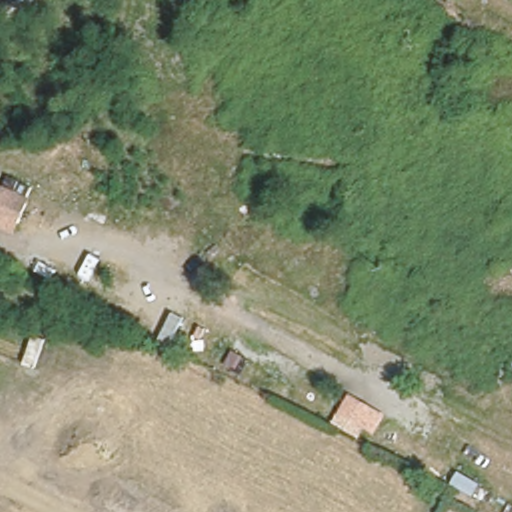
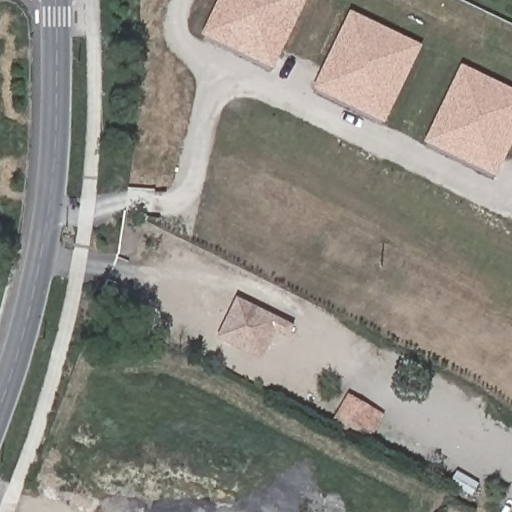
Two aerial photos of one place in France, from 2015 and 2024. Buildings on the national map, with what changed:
new [(274,70),(202,35),(219,0),(307,0),(274,70)]
new [(385,124),(313,89),(351,10),(423,45),(385,124)]
new [(424,142),(462,64),(512,89),(512,145),(496,177),(424,142)]
demolished [(28,199),(11,233),(0,229),(0,186),(28,199)]
new [(295,326),(289,338),(276,332),(264,361),(217,337),(237,297),(295,326)]
unchanged [(346,393),(383,414),(372,431),(334,413),(346,393)]

